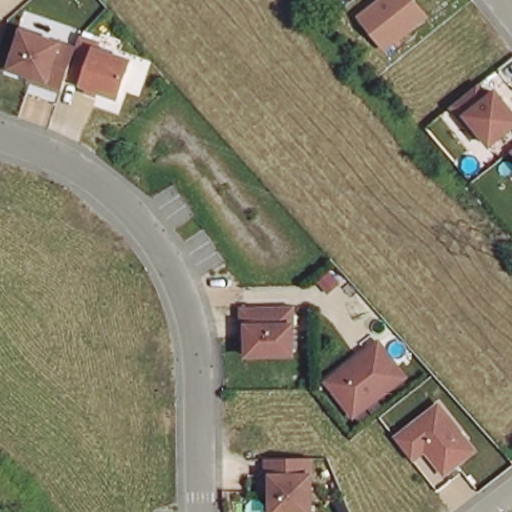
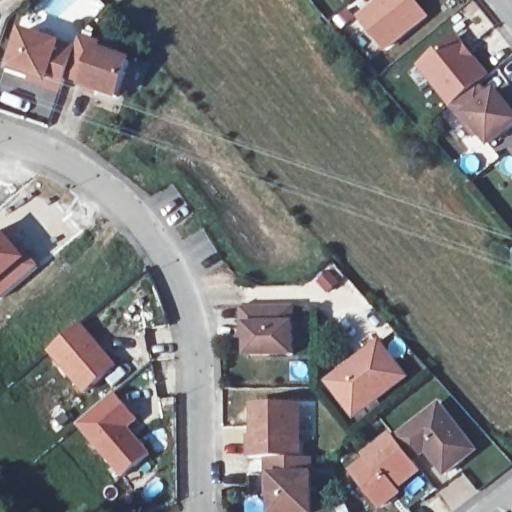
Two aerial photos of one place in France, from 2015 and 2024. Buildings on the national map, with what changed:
unchanged [(386,48),(353,13),(373,0),(418,0),(430,15),(386,48)]
unchanged [(116,99),(88,89),(90,84),(70,79),(65,93),(4,74),(17,30),(75,43),(80,37),(132,50),(116,99)]
new [(416,67),(456,34),(484,70),(446,101),(416,67)]
unchanged [(512,130),(486,150),(446,101),(484,70),(512,108),(512,130)]
unchanged [(512,149),(512,154),(510,150),(512,149)]
new [(1,226),(38,267),(0,297),(0,228),(1,226)]
unchanged [(291,305),(295,305),(295,354),(268,354),(249,355),(248,333),(248,326),(244,326),(244,306),(291,305)]
new [(80,322),(126,374),(112,386),(103,376),(82,393),(46,352),(80,322)]
unchanged [(406,376),(355,415),(328,381),(380,341),(406,376)]
new [(114,392),(137,420),(130,428),(150,452),(118,477),(75,425),(114,392)]
unchanged [(441,400),(480,449),(443,476),(424,450),(412,459),(395,434),(441,400)]
new [(412,459),(420,471),(395,486),(399,492),(377,507),(348,467),(363,456),(360,452),(395,434),(412,459)]
unchanged [(315,512),(276,512),(276,475),(271,475),(271,457),(286,457),(315,457),(315,512)]

